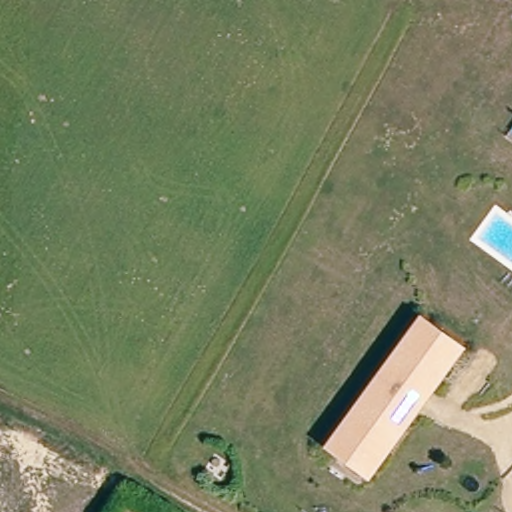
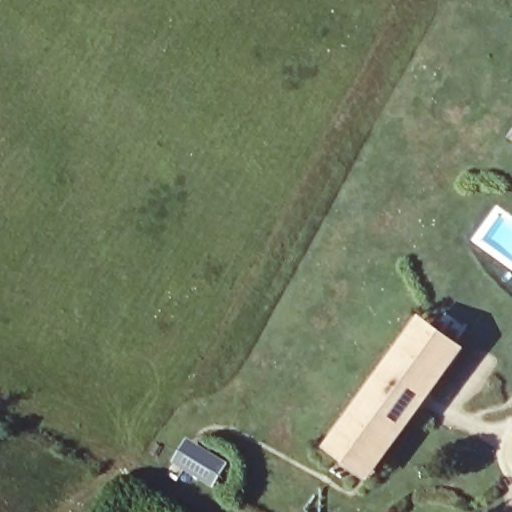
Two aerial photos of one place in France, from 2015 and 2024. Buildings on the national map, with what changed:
unchanged [(340,453),(332,447),(424,319),(432,324),(340,453)]
unchanged [(427,386),(410,373),(401,385),(418,398),(366,471),(340,453),(432,324),(458,342),(427,386)]
unchanged [(373,476),(366,471),(418,398),(401,385),(410,373),(427,386),(458,342),(465,347),(373,476)]
new [(176,463),(189,439),(229,464),(215,487),(176,463)]

